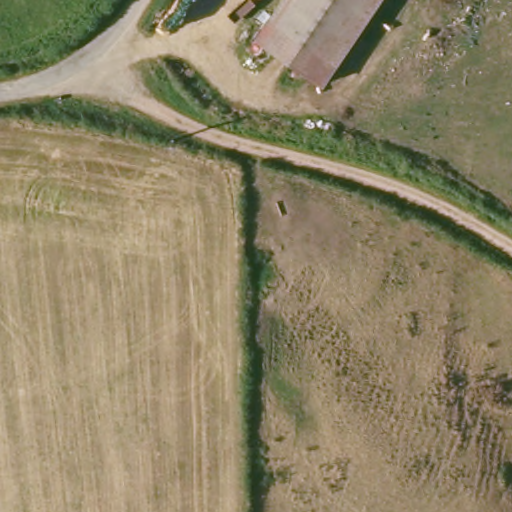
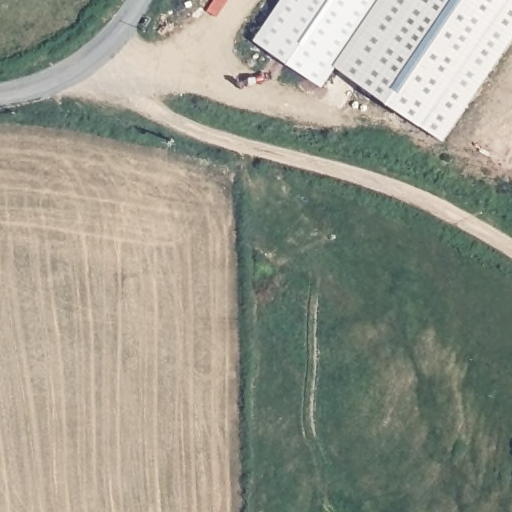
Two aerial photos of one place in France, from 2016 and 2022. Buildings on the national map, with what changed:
unchanged [(280,0),(376,0),(324,82),(255,39),(280,0)]
new [(376,0),(512,0),(512,45),(447,140),(335,63),(376,0)]

